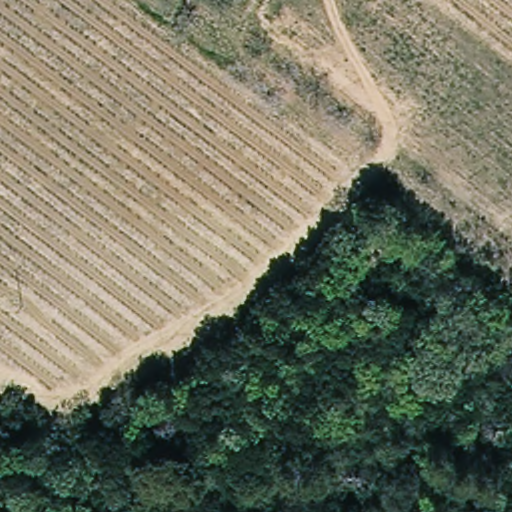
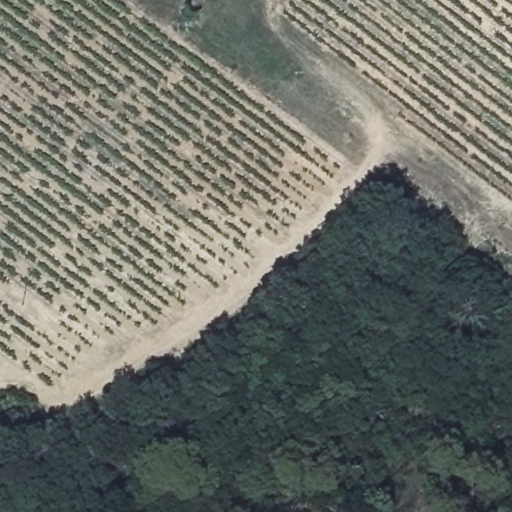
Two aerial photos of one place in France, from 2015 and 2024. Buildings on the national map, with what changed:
[]

